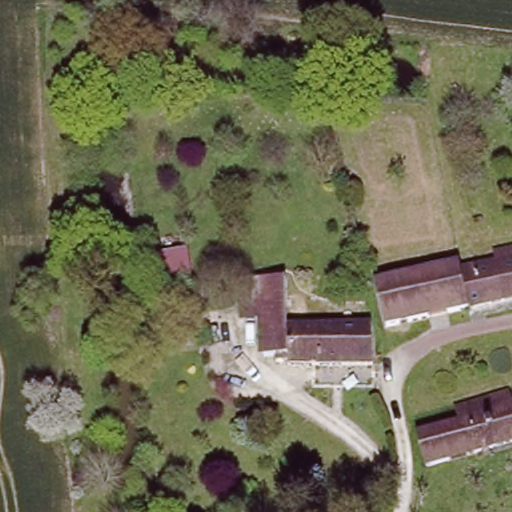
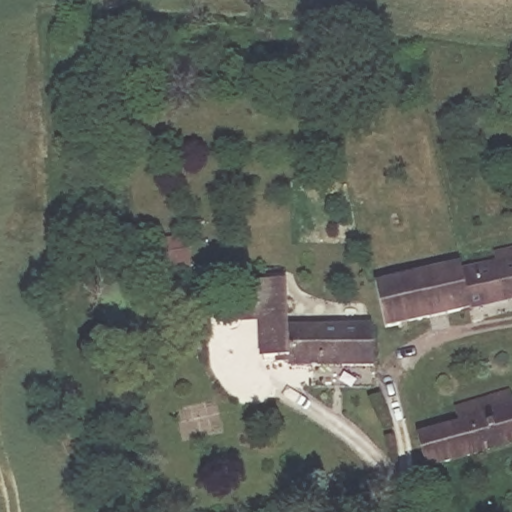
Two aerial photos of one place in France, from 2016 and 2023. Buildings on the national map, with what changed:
unchanged [(460,259),(491,251),(490,245),(512,240),(512,289),(470,299),(460,259)]
unchanged [(470,299),(386,322),(375,284),(460,259),(470,299)]
unchanged [(291,366),(262,357),(259,283),(283,281),(286,322),(370,323),(376,362),(291,366)]
unchanged [(512,446),(480,455),(466,459),(458,425),(456,413),(473,408),(512,398),(512,446)]
unchanged [(458,425),(466,459),(427,470),(422,435),(458,425)]

